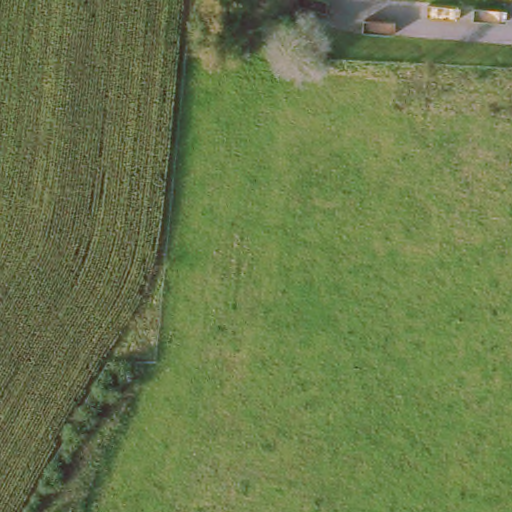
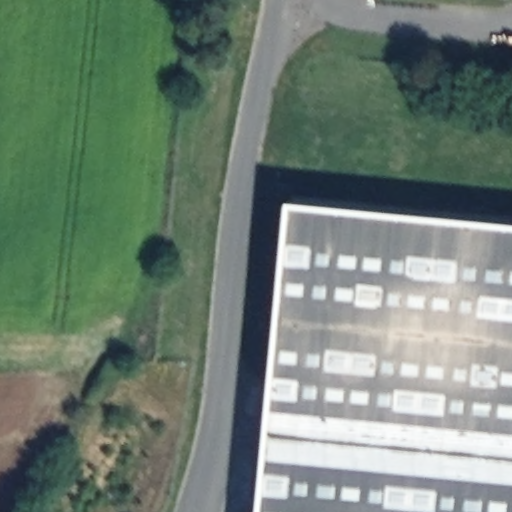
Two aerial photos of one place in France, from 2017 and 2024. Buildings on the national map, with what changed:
new [(512,223),(512,512),(265,512),(295,202),(512,223)]

